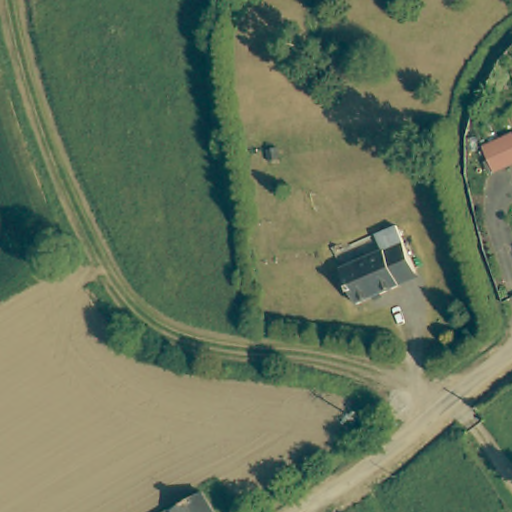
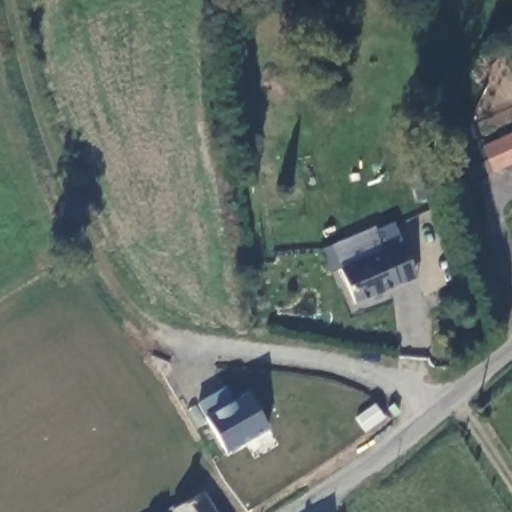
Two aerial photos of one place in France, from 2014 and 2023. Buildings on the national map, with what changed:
unchanged [(341,266),(404,242),(417,275),(355,301),(341,266)]
new [(225,387),(234,403),(247,396),(266,428),(224,454),(195,405),(225,387)]
unchanged [(206,496),(215,512),(177,512),(206,496)]

